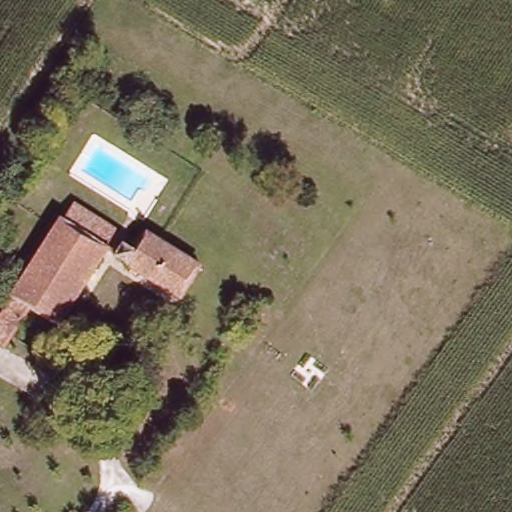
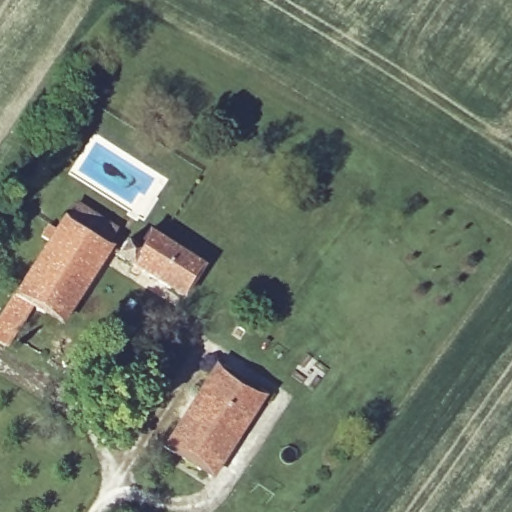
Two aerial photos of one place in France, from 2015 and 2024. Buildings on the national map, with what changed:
unchanged [(62,214),(72,199),(112,225),(103,240),(104,241),(55,318),(27,301),(1,341),(0,341),(0,306),(61,214),(62,214)]
unchanged [(182,291),(142,265),(139,270),(131,265),(134,261),(116,249),(125,236),(137,244),(148,226),(201,260),(182,291)]
new [(265,395),(211,479),(159,446),(213,363),(265,395)]

